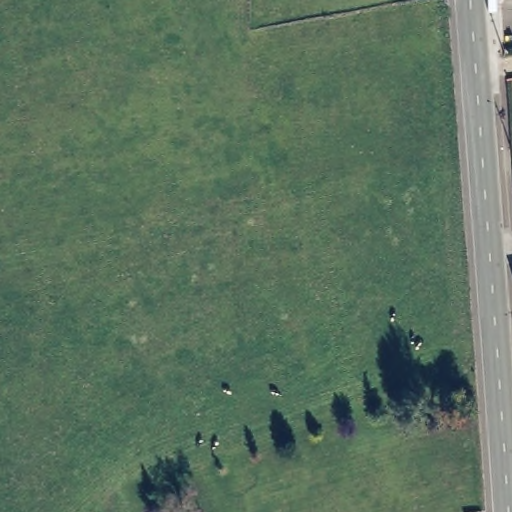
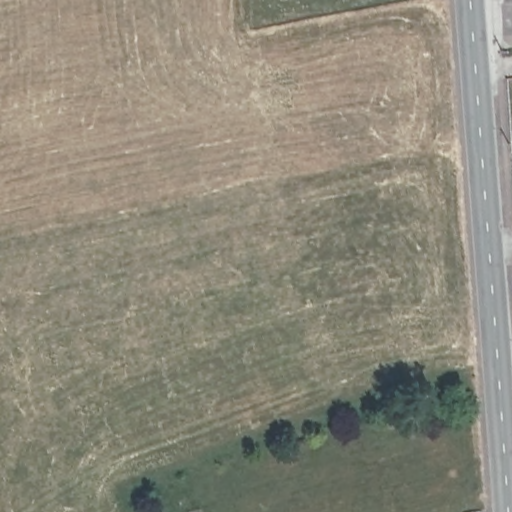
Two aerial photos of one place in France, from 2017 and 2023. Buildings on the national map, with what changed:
[]

